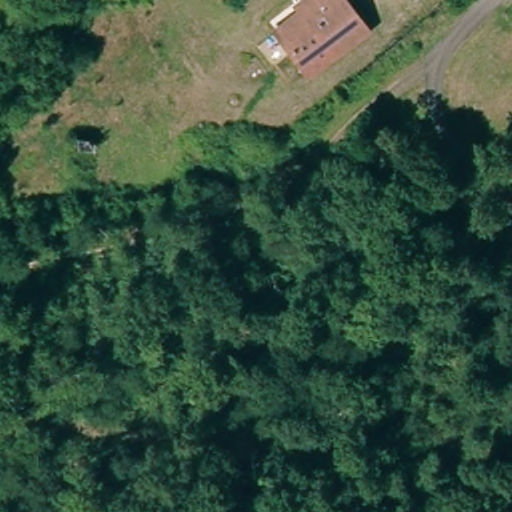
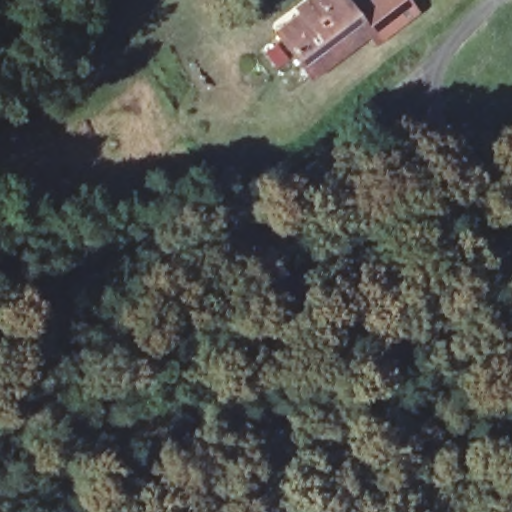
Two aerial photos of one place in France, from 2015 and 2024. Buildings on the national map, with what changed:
unchanged [(367,32),(309,76),(275,32),(301,13),(297,7),(307,0),(344,0),(360,22),(367,32)]
new [(377,44),(367,32),(360,22),(352,12),(367,0),(411,0),(419,11),(377,44)]

